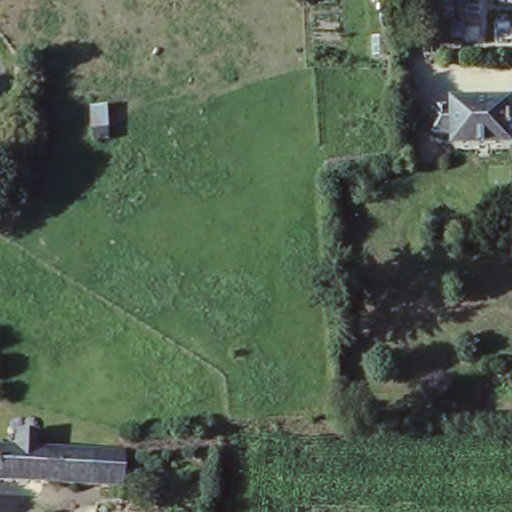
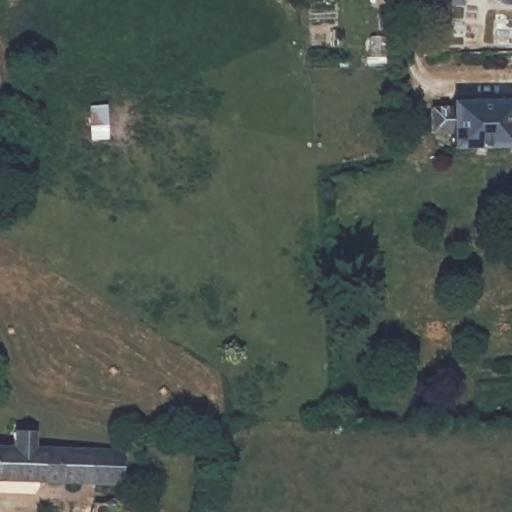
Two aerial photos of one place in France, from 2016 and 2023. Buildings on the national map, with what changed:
unchanged [(512,10),(509,10),(498,10),(495,9),(485,0),(512,0),(512,10)]
unchanged [(437,134),(421,134),(420,107),(437,107),(456,107),(456,102),(512,102),(512,148),(457,149),(459,134),(437,134)]
unchanged [(8,447),(9,431),(30,432),(29,447),(117,452),(115,485),(0,481),(0,447),(8,447)]

